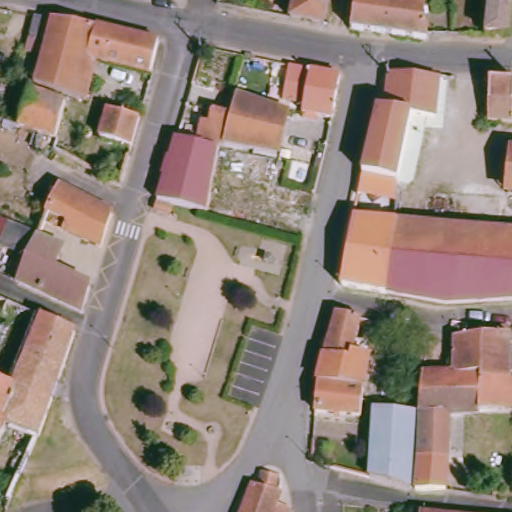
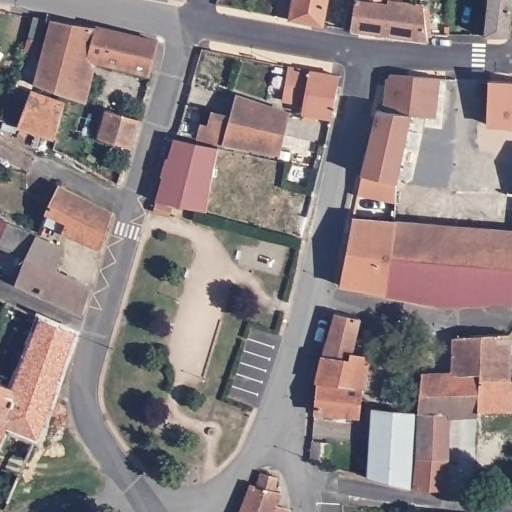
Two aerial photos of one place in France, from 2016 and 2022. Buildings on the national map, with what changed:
unchanged [(329,29),(292,23),(296,0),(334,0),(329,29)]
unchanged [(429,40),(355,32),(360,0),(392,0),(425,4),(429,38),(429,40)]
unchanged [(497,0),(512,0),(512,44),(490,44),(497,0)]
unchanged [(70,100),(34,88),(54,19),(162,41),(151,77),(102,64),(89,106),(70,100)]
unchanged [(290,63),(312,69),(304,105),(282,100),(290,63)]
unchanged [(342,73),(332,117),(303,110),(313,67),(342,73)]
unchanged [(377,106),(388,107),(394,72),(445,75),(439,119),(414,118),(403,178),(399,203),(360,195),(363,172),(377,106)]
unchanged [(490,78),(512,81),(512,123),(486,120),(490,78)]
unchanged [(34,88),(70,100),(57,140),(20,127),(34,88)]
unchanged [(205,124),(212,126),(216,112),(235,117),(241,97),(264,105),(252,152),(228,146),(201,140),(205,124)]
unchanged [(252,152),(264,105),(290,114),(278,158),(252,152)]
unchanged [(105,139),(113,116),(145,125),(137,152),(105,139)]
unchanged [(210,213),(160,200),(178,139),(224,150),(210,213)]
unchanged [(512,160),(512,196),(508,196),(512,160)]
unchanged [(50,223),(62,186),(113,212),(103,246),(50,223)]
unchanged [(340,286),(355,217),(400,219),(391,294),(340,286)]
unchanged [(512,302),(450,306),(391,294),(400,219),(512,230),(512,302)]
unchanged [(84,314),(18,283),(30,253),(1,244),(8,224),(64,245),(58,267),(92,284),(84,314)]
unchanged [(15,308),(7,322),(0,319),(0,301),(15,308)]
unchanged [(321,383),(325,357),(338,314),(365,320),(356,353),(370,355),(366,387),(321,383)]
unchanged [(10,429),(1,449),(0,448),(0,378),(13,383),(43,319),(78,335),(55,398),(40,440),(10,429)]
unchanged [(482,370),(451,371),(452,336),(512,334),(512,378),(482,377),(482,370)]
unchanged [(422,371),(451,371),(482,370),(482,377),(512,378),(512,434),(480,432),(480,413),(452,412),(446,491),(415,489),(422,371)]
unchanged [(321,383),(366,387),(365,397),(363,406),(362,416),(318,412),(321,383)]
unchanged [(413,488),(367,475),(370,421),(361,421),(362,416),(363,406),(370,407),(417,410),(413,488)]
unchanged [(259,487),(264,473),(287,480),(285,493),(281,507),(294,512),(242,512),(252,483),(259,487)]

